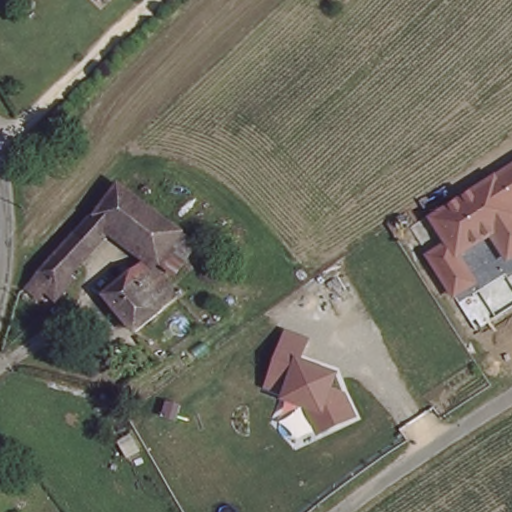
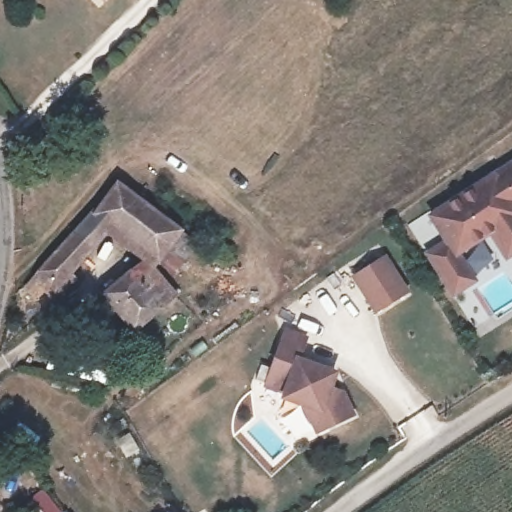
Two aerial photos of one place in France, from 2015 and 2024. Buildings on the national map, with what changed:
unchanged [(512,162),(512,256),(504,260),(488,234),(459,252),(478,281),(452,297),(424,251),(443,240),(426,214),(512,162)]
unchanged [(79,220),(109,185),(123,194),(178,232),(149,269),(104,237),(79,220)]
unchanged [(58,288),(35,271),(79,220),(104,237),(58,288)]
new [(402,294),(371,314),(349,279),(381,259),(402,294)]
unchanged [(171,303),(135,329),(106,291),(138,265),(171,303)]
unchanged [(306,335),(299,357),(339,371),(334,384),(351,416),(314,435),(299,405),(279,396),(261,388),(281,327),(306,335)]

